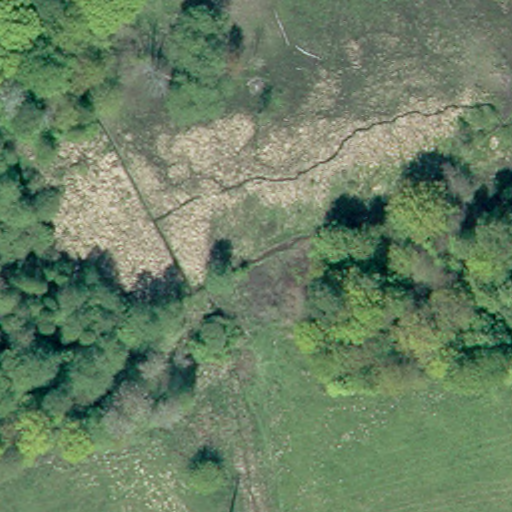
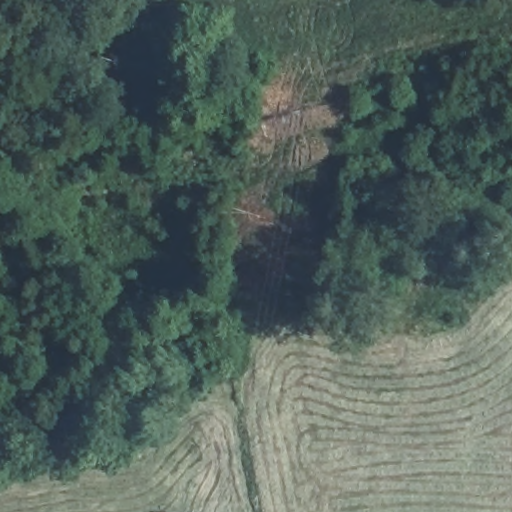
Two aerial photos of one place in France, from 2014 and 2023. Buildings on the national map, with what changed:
[]

